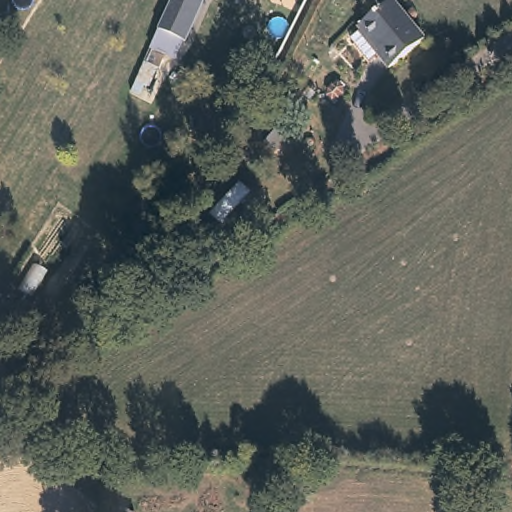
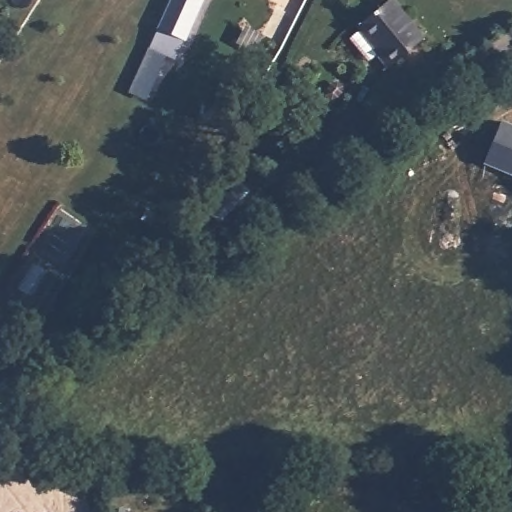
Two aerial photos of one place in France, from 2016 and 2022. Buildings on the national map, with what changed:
unchanged [(159,20),(157,20),(160,15),(168,0),(201,0),(185,33),(182,32),(174,51),(150,39),(159,20)]
unchanged [(391,64),(381,52),(375,57),(355,32),(363,25),(361,22),(390,0),(398,0),(426,35),(391,64)]
new [(501,121),(512,126),(512,176),(483,164),(501,121)]
unchanged [(251,161),(241,169),(232,160),(242,151),(251,161)]

